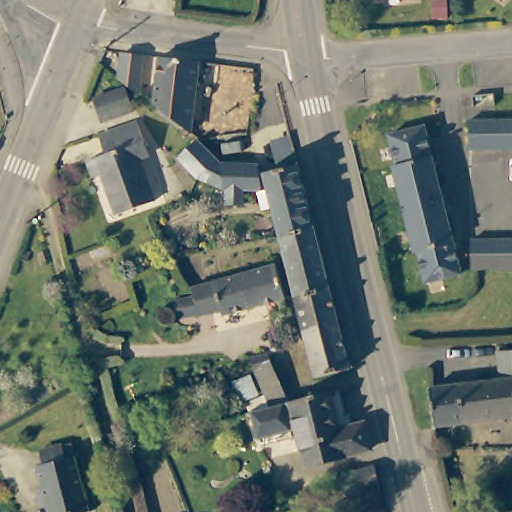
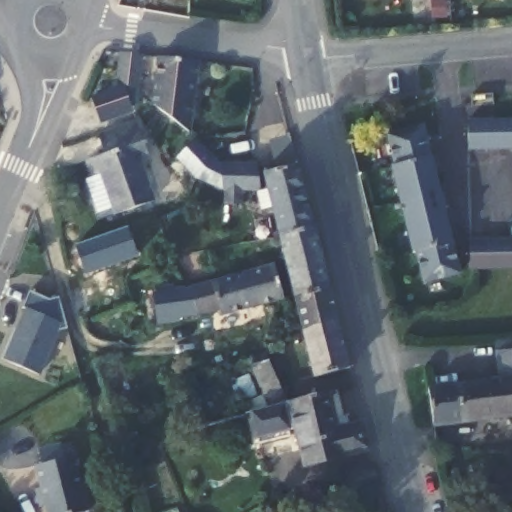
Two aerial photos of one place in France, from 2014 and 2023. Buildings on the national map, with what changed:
unchanged [(140,53),(138,83),(118,81),(123,53),(140,53)]
unchanged [(172,57),(207,60),(201,133),(165,99),(168,56),(172,57)]
unchanged [(119,85),(128,110),(101,122),(93,98),(119,85)]
unchanged [(512,149),(470,150),(469,119),(512,118),(512,149)]
unchanged [(104,172),(93,176),(87,158),(106,151),(100,133),(113,128),(137,119),(145,141),(149,151),(140,154),(154,196),(142,200),(117,210),(110,191),(104,172)]
unchanged [(434,144),(465,275),(466,278),(430,287),(422,256),(419,256),(399,170),(391,139),(431,130),(434,144)]
unchanged [(287,233),(283,219),(274,185),(271,168),(289,164),(282,136),(298,132),(317,211),(321,225),(335,282),(301,291),(287,233)]
unchanged [(232,200),(232,189),(230,189),(209,176),(189,158),(207,138),(228,158),(266,159),(267,186),(248,187),(248,200),(232,200)]
unchanged [(472,244),(472,239),(512,239),(512,274),(472,274),(472,244)]
unchanged [(177,301),(198,296),(196,288),(216,281),(248,270),(270,263),(275,261),(285,293),(257,302),(225,313),(224,309),(180,316),(177,301)]
unchanged [(309,326),(301,291),(335,282),(344,317),(309,326)]
new [(31,290),(48,299),(57,297),(67,328),(58,332),(40,375),(1,358),(22,308),(31,290)]
unchanged [(356,362),(341,365),(320,369),(309,326),(344,317),(356,362)]
unchanged [(494,351),(512,349),(512,378),(498,380),(494,351)]
unchanged [(246,357),(263,351),(282,397),(264,402),(246,357)]
unchanged [(432,390),(498,380),(512,378),(512,419),(439,430),(432,390)]
unchanged [(366,446),(360,448),(303,467),(291,433),(269,440),(263,441),(254,416),(262,413),(321,393),(333,427),(351,421),(357,419),(366,446)]
unchanged [(78,512),(52,512),(48,501),(45,502),(39,489),(44,487),(37,462),(47,459),(43,445),(61,440),(66,453),(75,451),(92,508),(78,512)]
unchanged [(347,496),(336,480),(365,465),(372,460),(377,478),(347,496)]
unchanged [(281,512),(271,512),(279,508),(281,512)]

